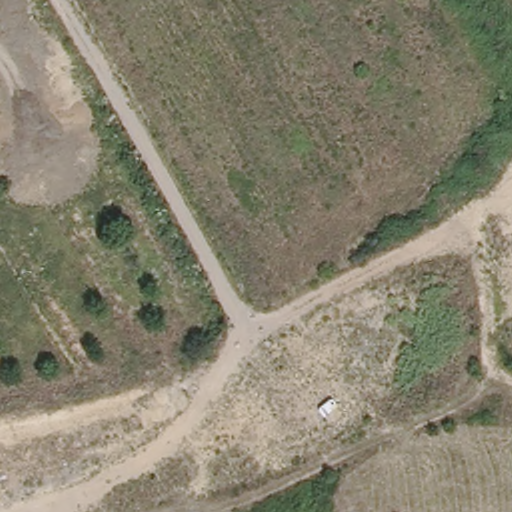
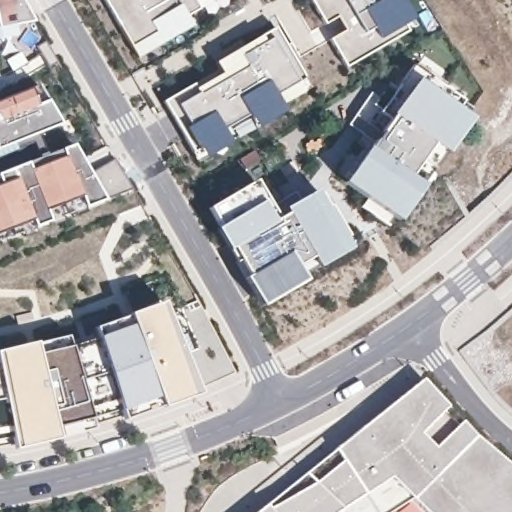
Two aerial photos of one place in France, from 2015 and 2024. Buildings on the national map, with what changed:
new [(24,0),(36,21),(0,27),(0,0),(24,0)]
new [(137,47),(110,0),(200,0),(205,7),(137,47)]
new [(403,22),(407,29),(347,67),(331,40),(346,31),(338,16),(326,24),(312,0),(404,0),(413,16),(403,22)]
new [(197,87),(223,72),(217,62),(262,35),(276,27),(311,87),(306,91),(284,104),(287,109),(232,141),(205,156),(199,160),(164,101),(197,87)]
new [(470,119),(447,152),(432,142),(410,176),(424,186),(400,220),(344,182),(416,77),(470,119)]
new [(31,90),(37,106),(48,101),(60,123),(0,149),(0,102),(31,90)]
new [(73,144),(104,199),(86,206),(80,196),(47,209),(50,221),(37,227),(33,217),(0,231),(0,173),(73,144)]
new [(256,180),(280,219),(288,215),(284,209),(313,191),(350,249),(321,268),(313,255),(296,267),(304,280),(261,306),(245,277),(249,275),(233,250),(229,252),(216,229),(221,226),(209,207),(256,180)]
new [(35,343),(69,337),(72,347),(99,336),(97,327),(130,317),(128,312),(163,301),(200,393),(164,407),(160,397),(122,413),(118,398),(90,408),(92,418),(57,427),(61,438),(16,449),(12,430),(0,432),(0,351),(35,343)]
new [(424,378),(499,456),(512,464),(512,512),(429,512),(414,497),(390,512),(258,512),(424,378)]

